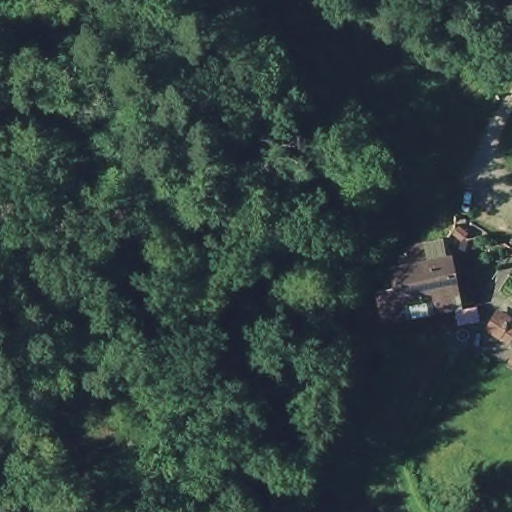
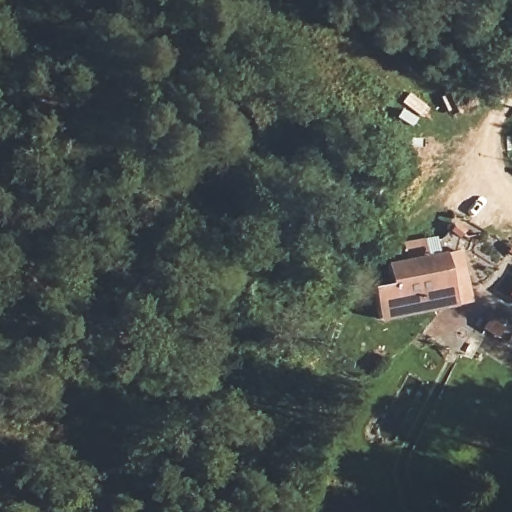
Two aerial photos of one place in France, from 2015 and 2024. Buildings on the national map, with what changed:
unchanged [(482,303),(383,328),(372,288),(395,283),(392,260),(409,257),(407,244),(472,234),(482,303)]
unchanged [(479,340),(511,289),(512,291),(512,365),(479,340)]

